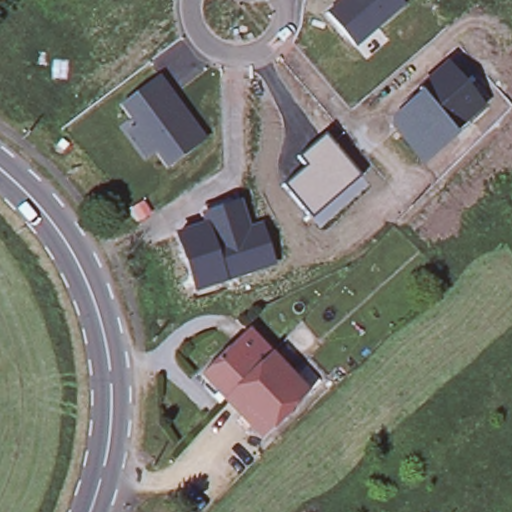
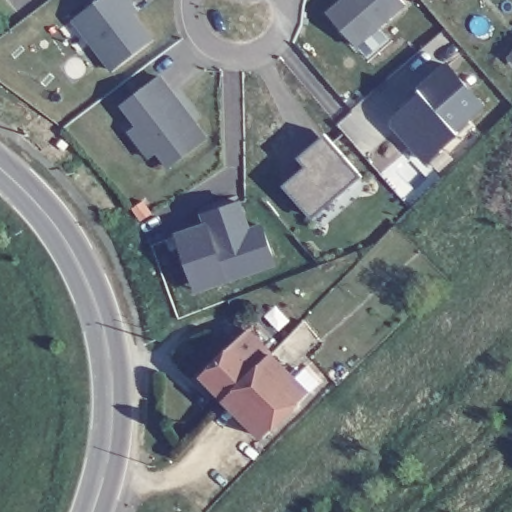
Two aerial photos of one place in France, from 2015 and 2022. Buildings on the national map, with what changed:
new [(140,11),(135,15),(155,39),(112,72),(72,20),(98,0),(133,0),(132,1),(140,11)]
unchanged [(401,0),(407,6),(357,48),(327,13),(343,0),(401,0)]
unchanged [(487,106),(422,164),(387,120),(449,60),(487,106)]
unchanged [(207,139),(169,168),(157,153),(149,159),(127,131),(135,126),(120,106),(160,77),(207,139)]
unchanged [(361,177),(313,219),(285,185),(307,166),(300,157),(326,137),(361,177)]
unchanged [(204,223),(202,215),(242,201),(250,228),(264,223),(277,265),(195,292),(176,233),(204,223)]
unchanged [(275,353),(279,357),(275,360),(285,370),(240,414),(225,399),(224,398),(201,375),(234,343),(247,331),(268,353),(270,355),(272,356),(275,353)]
unchanged [(307,393),(262,437),(240,414),(285,370),(307,393)]

